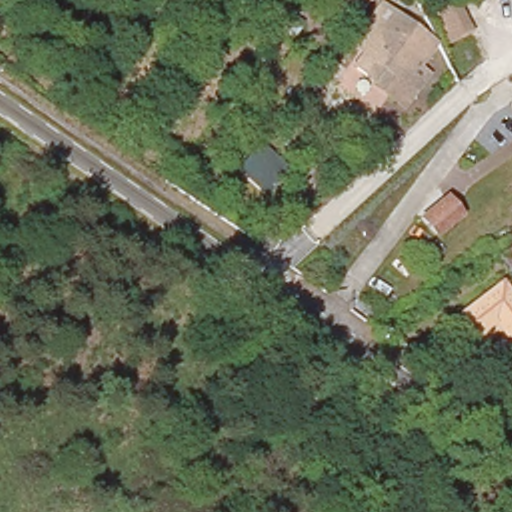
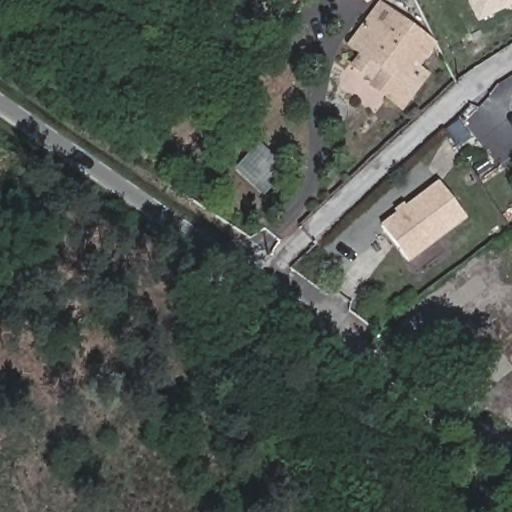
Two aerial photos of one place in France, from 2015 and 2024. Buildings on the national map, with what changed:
demolished [(427,12),(450,0),(455,0),(470,30),(442,46),(427,12)]
new [(466,0),(512,0),(512,5),(477,22),(466,0)]
unchanged [(347,68),(360,52),(355,48),(371,25),(383,32),(393,18),(432,44),(415,69),(424,75),(403,105),(386,94),(372,84),(347,68)]
unchanged [(236,168),(247,151),(252,144),(284,165),(279,173),(267,189),(236,168)]
new [(409,262),(380,224),(437,180),(467,218),(409,262)]
demolished [(462,215),(435,238),(420,221),(448,199),(462,215)]
unchanged [(497,261),(512,249),(512,281),(497,261)]
unchanged [(496,333),(480,345),(457,317),(499,285),(512,302),(512,352),(496,333)]

